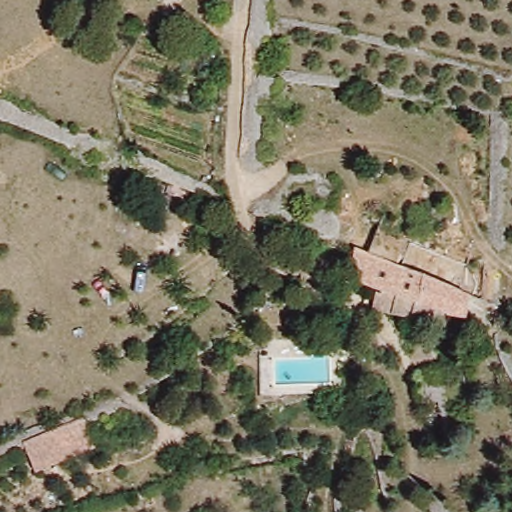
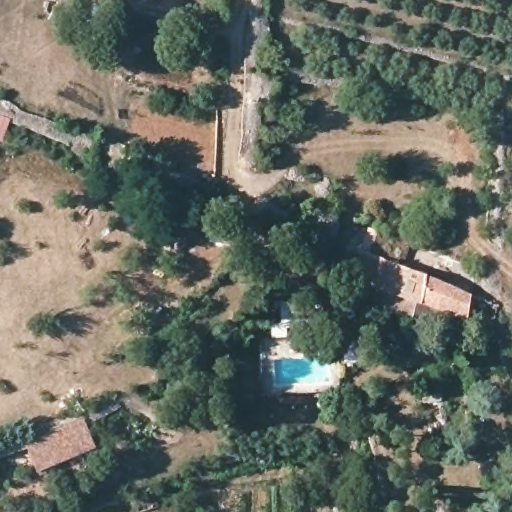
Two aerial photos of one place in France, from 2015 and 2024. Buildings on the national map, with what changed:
unchanged [(387,310),(392,292),(374,285),(379,257),(471,294),(468,318),(457,317),(455,326),(387,310)]
unchanged [(424,401),(421,368),(438,367),(441,395),(424,401)]
unchanged [(83,418),(94,446),(37,468),(25,441),(83,418)]

